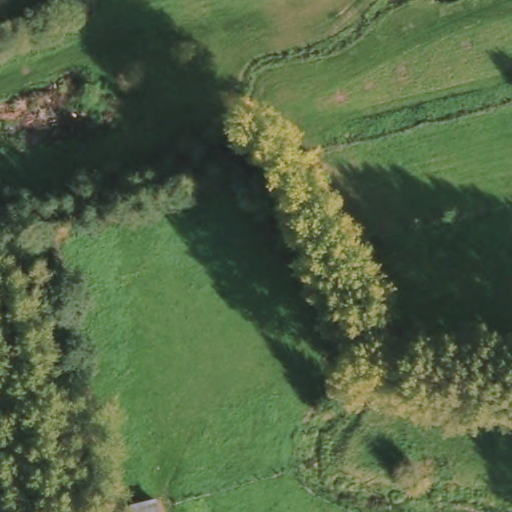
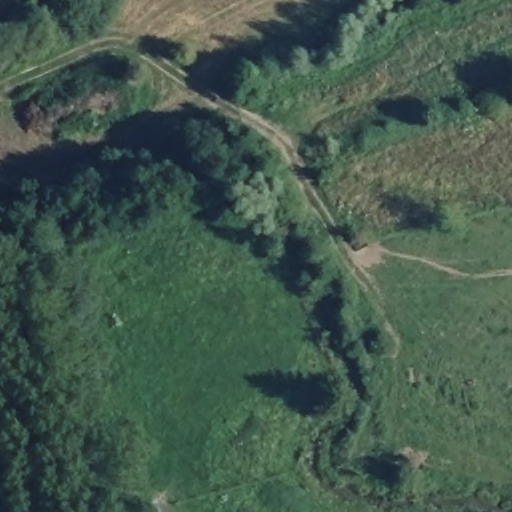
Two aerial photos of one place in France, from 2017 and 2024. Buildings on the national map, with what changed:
unchanged [(159,499),(160,512),(139,512),(138,501),(159,499)]

